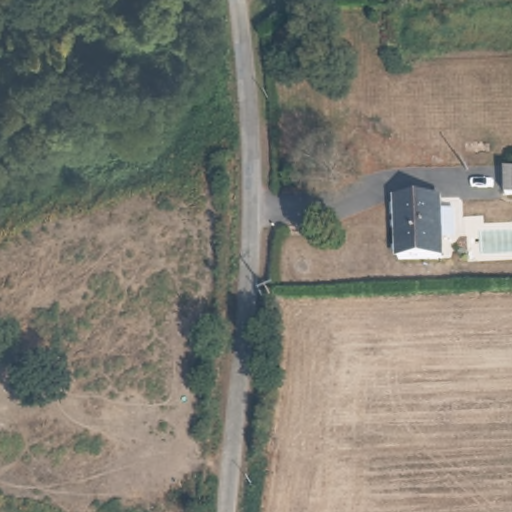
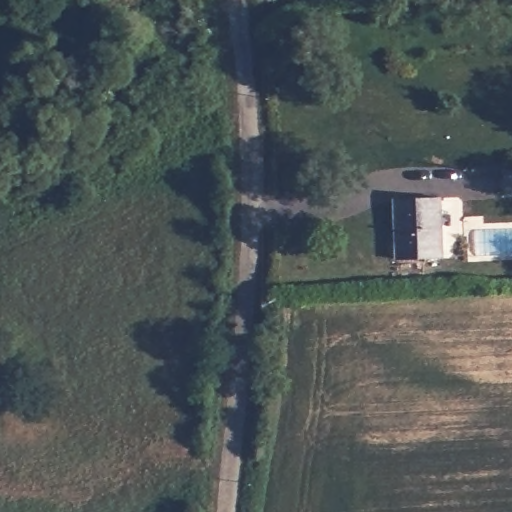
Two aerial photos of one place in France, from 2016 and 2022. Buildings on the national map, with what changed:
unchanged [(504,180),(512,179),(512,202),(505,202),(504,180)]
unchanged [(438,262),(394,263),(392,202),(435,201),(438,262)]

